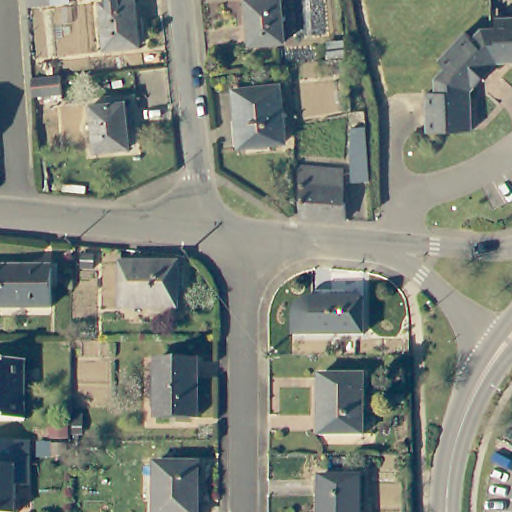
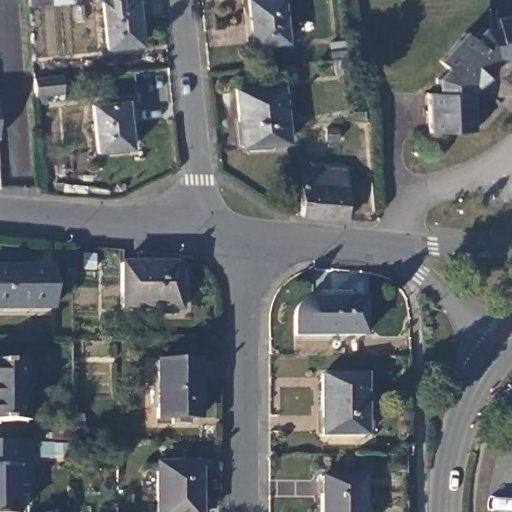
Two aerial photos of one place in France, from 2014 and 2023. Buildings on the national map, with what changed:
unchanged [(67,0),(67,3),(49,3),(27,5),(26,0),(67,0)]
unchanged [(103,0),(135,0),(137,45),(105,46),(103,0)]
unchanged [(245,0),(279,0),(280,43),(247,44),(245,0)]
unchanged [(512,16),(512,62),(497,63),(470,95),(471,131),(427,132),(426,94),(435,94),(436,79),(446,68),(437,59),(466,32),(473,39),(487,26),(490,29),(496,23),(496,17),(512,16)]
unchanged [(241,147),(237,93),(278,90),(282,145),(241,147)]
unchanged [(96,150),(96,103),(126,103),(126,150),(96,150)]
unchanged [(347,174),(347,222),(308,220),(305,174),(347,174)]
unchanged [(123,307),(124,263),(179,263),(178,308),(123,307)]
unchanged [(0,266),(42,266),(42,306),(0,305),(0,266)]
unchanged [(307,332),(307,298),(358,299),(358,333),(307,332)]
unchanged [(0,360),(26,361),(26,420),(0,420),(0,360)]
unchanged [(156,416),(157,361),(200,363),(198,418),(156,416)]
unchanged [(322,437),(322,379),(362,379),(362,436),(322,437)]
unchanged [(0,438),(30,439),(27,483),(14,483),(14,512),(0,512),(0,438)]
unchanged [(155,466),(194,466),(193,512),(155,512),(155,466)]
unchanged [(322,476),(362,478),(360,512),(320,512),(322,476)]

